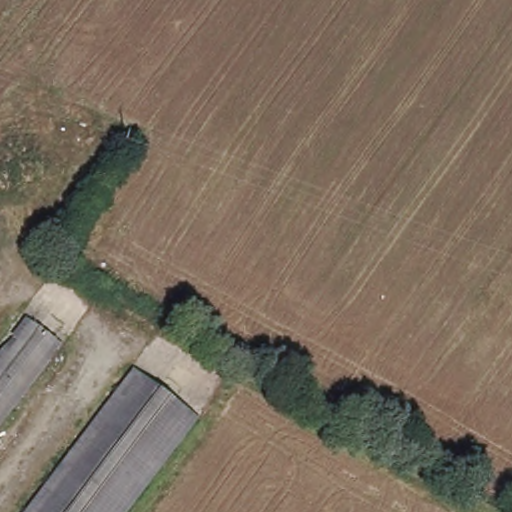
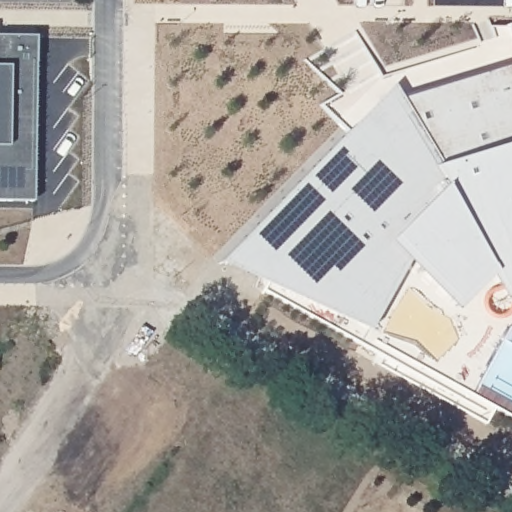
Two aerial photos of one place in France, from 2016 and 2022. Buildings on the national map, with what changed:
new [(512,29),(512,56),(503,29),(512,29)]
new [(35,36),(32,202),(0,201),(0,36),(35,36)]
new [(359,344),(261,292),(267,278),(223,258),(346,132),(369,153),(402,119),(391,99),(512,63),(512,420),(363,337),(359,344)]
new [(391,99),(402,119),(369,153),(346,132),(390,86),(398,98),(391,99)]
demolished [(56,344),(0,420),(0,349),(22,320),(56,344)]
demolished [(148,380),(208,426),(143,512),(49,512),(148,380)]

